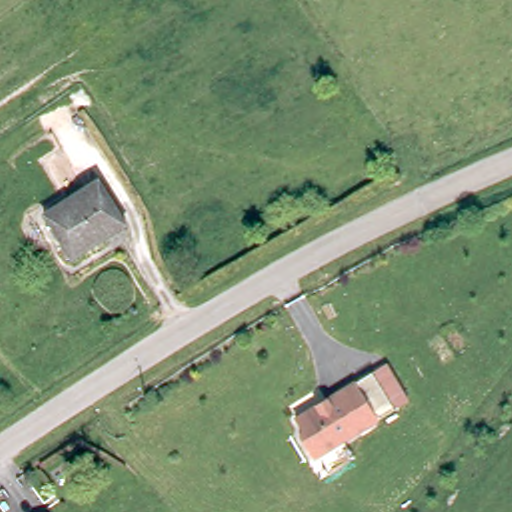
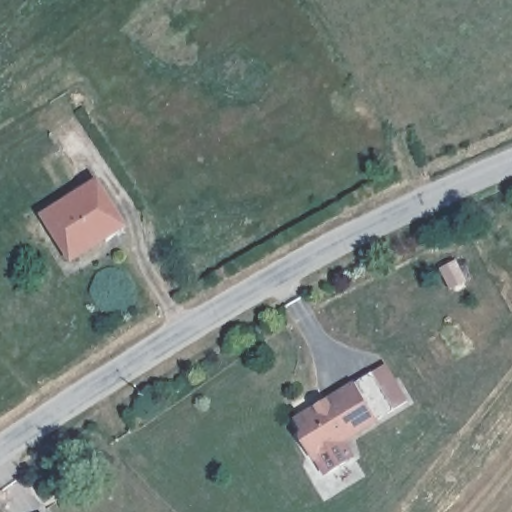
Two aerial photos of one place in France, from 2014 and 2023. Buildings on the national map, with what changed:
unchanged [(43,217),(98,183),(125,225),(69,261),(43,217)]
unchanged [(298,439),(299,432),(293,422),(314,407),(316,411),(325,406),(322,402),(349,383),(366,371),(391,407),(374,418),(313,461),(298,439)]

